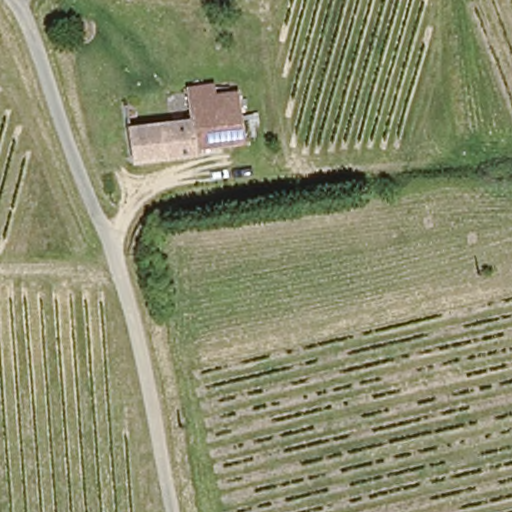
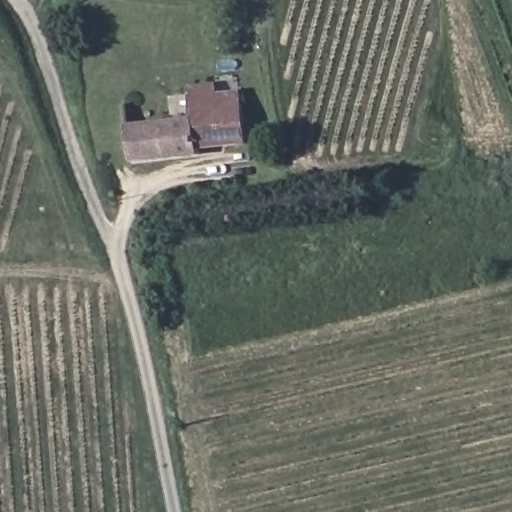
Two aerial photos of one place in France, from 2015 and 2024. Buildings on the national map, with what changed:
unchanged [(197,151),(129,155),(126,121),(191,118),(189,96),(188,86),(192,86),(217,84),(218,94),(242,92),(245,141),(196,145),(197,151)]

